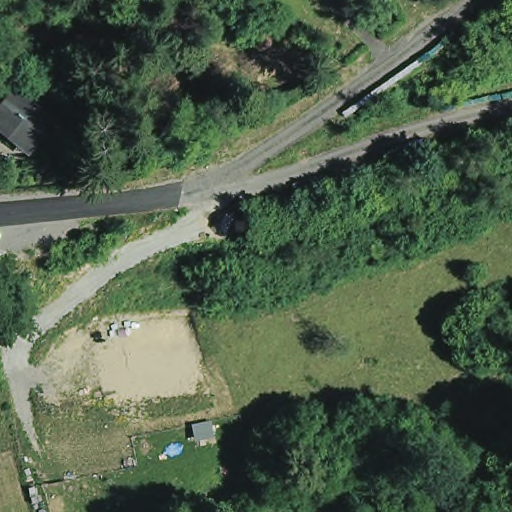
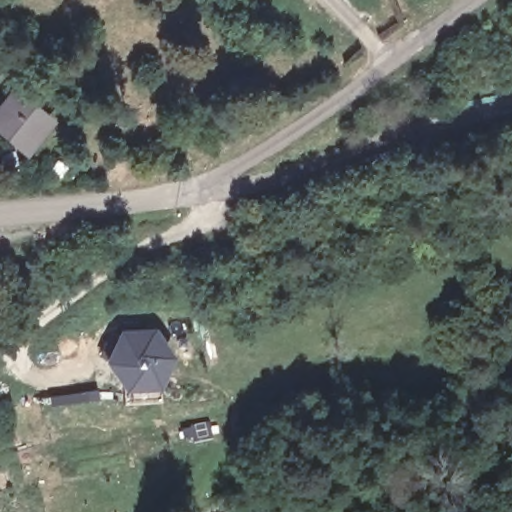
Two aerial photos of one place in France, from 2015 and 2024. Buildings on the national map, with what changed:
unchanged [(0,115),(3,118),(13,105),(47,132),(25,159),(8,146),(4,151),(0,149),(0,115)]
new [(158,391),(124,392),(104,361),(122,331),(157,330),(174,359),(158,391)]

